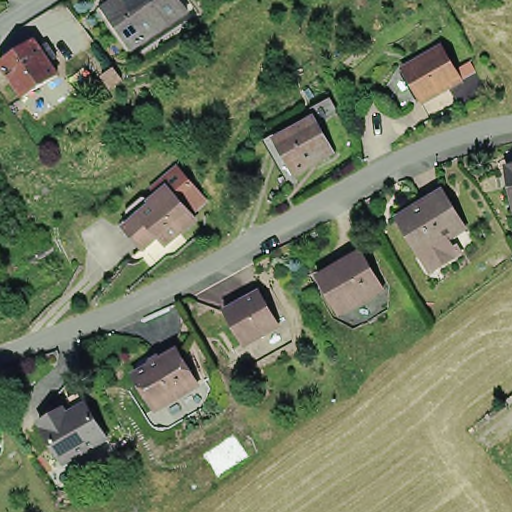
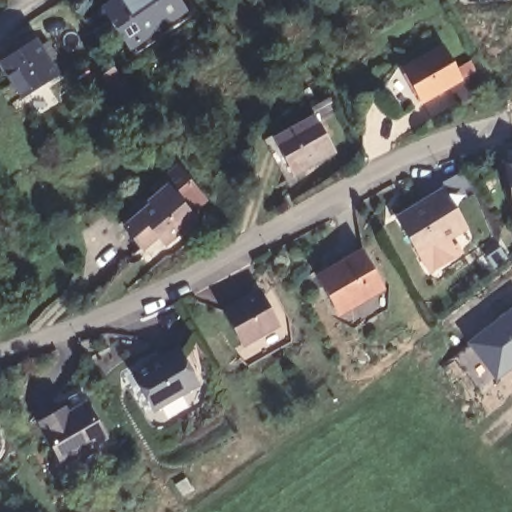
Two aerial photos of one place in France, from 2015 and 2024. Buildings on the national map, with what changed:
unchanged [(106,0),(181,0),(185,4),(130,42),(101,3),(106,0)]
unchanged [(0,67),(0,57),(30,32),(60,63),(23,94),(0,67)]
unchanged [(456,102),(446,84),(421,97),(404,65),(440,44),(452,66),(470,56),(476,67),(487,85),(456,102)]
unchanged [(116,75),(121,81),(108,89),(99,77),(110,67),(116,75)]
unchanged [(336,146),(295,169),(276,132),(316,110),(336,146)]
unchanged [(510,167),(509,161),(512,160),(512,175),(510,167)]
unchanged [(137,212),(130,204),(148,189),(155,197),(155,196),(154,194),(171,179),(198,211),(168,236),(161,227),(146,240),(128,219),(137,212)]
unchanged [(436,265),(430,263),(422,251),(399,212),(422,197),(446,182),(471,217),(463,221),(450,231),(461,247),(436,265)]
unchanged [(338,313),(315,276),(363,247),(386,283),(338,313)]
unchanged [(249,345),(227,310),(260,290),(282,325),(249,345)]
new [(493,387),(460,342),(512,302),(512,372),(493,387)]
unchanged [(154,402),(135,368),(180,345),(198,378),(154,402)]
unchanged [(45,427),(40,420),(72,401),(69,395),(81,388),(87,401),(89,401),(109,435),(63,460),(45,427)]

